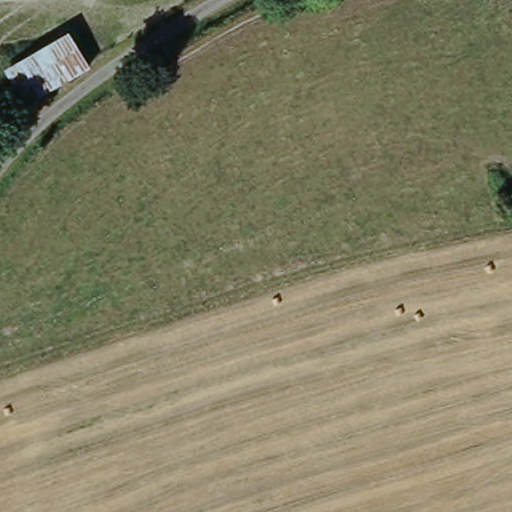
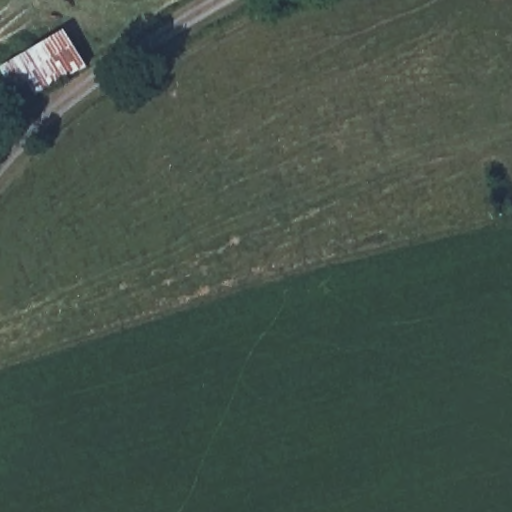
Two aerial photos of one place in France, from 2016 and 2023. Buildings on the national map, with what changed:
unchanged [(33,108),(15,74),(75,39),(95,72),(33,108)]

